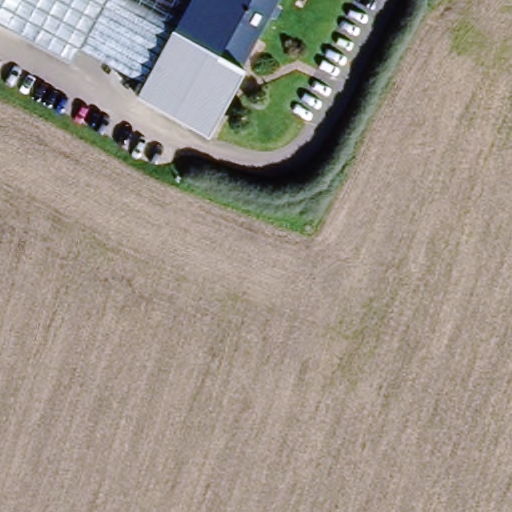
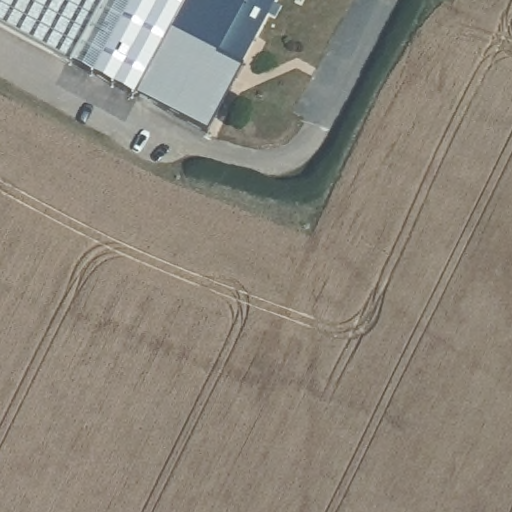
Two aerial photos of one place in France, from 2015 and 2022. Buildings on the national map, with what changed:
unchanged [(144,83),(78,47),(70,61),(0,24),(0,0),(189,0),(144,83)]
unchanged [(241,66),(244,68),(208,134),(137,96),(144,83),(189,0),(277,0),(241,66)]

